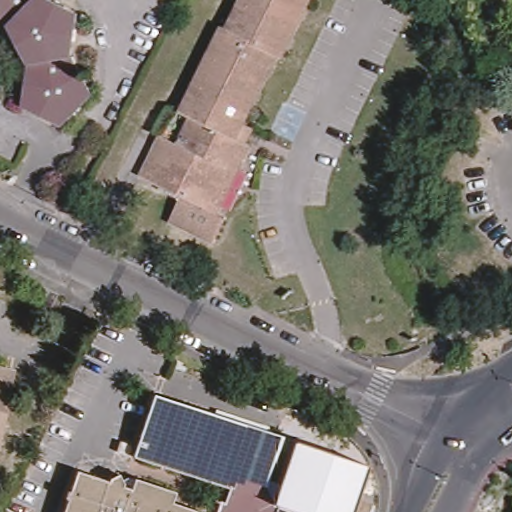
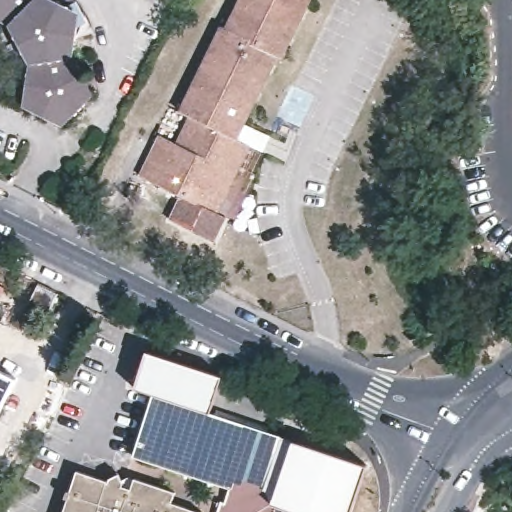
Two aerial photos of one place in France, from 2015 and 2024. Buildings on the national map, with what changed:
unchanged [(0,21),(0,0),(48,0),(80,17),(73,57),(89,97),(63,128),(20,103),(26,62),(9,27),(0,21)]
unchanged [(252,140),(257,142),(222,210),(185,192),(145,173),(165,132),(182,140),(195,114),(183,109),(227,22),(232,24),(244,0),(314,0),(287,56),(282,54),(250,119),(260,125),(252,140)]
unchanged [(231,215),(218,241),(172,218),(185,192),(222,210),(231,215)]
new [(16,275),(0,302),(0,267),(16,275)]
unchanged [(50,317),(32,307),(41,290),(59,298),(50,317)]
new [(223,376),(211,412),(158,395),(135,388),(147,351),(223,376)]
demolished [(8,376),(14,383),(20,384),(4,456),(0,455),(0,367),(10,370),(8,376)]
new [(18,377),(0,412),(0,368),(18,377)]
unchanged [(158,395),(284,436),(269,482),(267,488),(281,506),(299,512),(221,512),(224,502),(228,487),(137,457),(140,447),(158,395)]
unchanged [(299,512),(281,506),(273,496),(294,442),(364,465),(349,512),(299,512)]
unchanged [(68,498),(71,492),(67,491),(74,470),(106,480),(107,476),(114,472),(116,472),(118,475),(121,481),(120,483),(128,487),(132,475),(174,487),(170,500),(200,510),(199,512),(60,512),(65,497),(68,498)]

